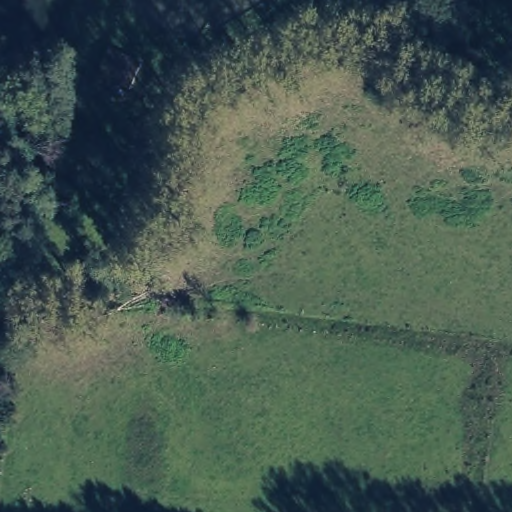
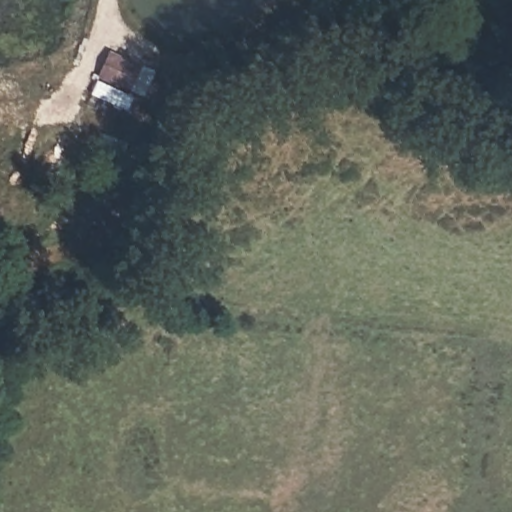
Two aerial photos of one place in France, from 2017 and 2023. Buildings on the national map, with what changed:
unchanged [(127,91),(93,77),(106,44),(138,61),(127,91)]

